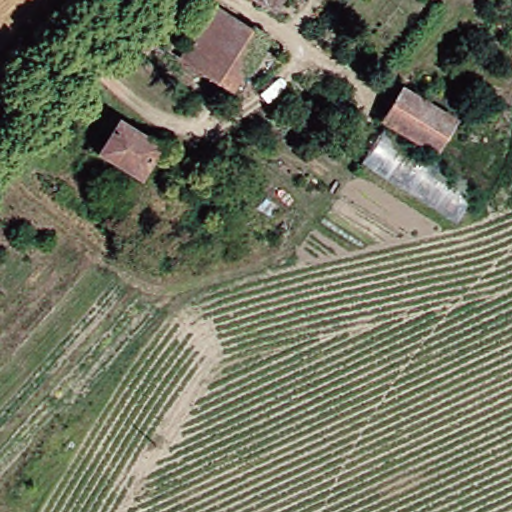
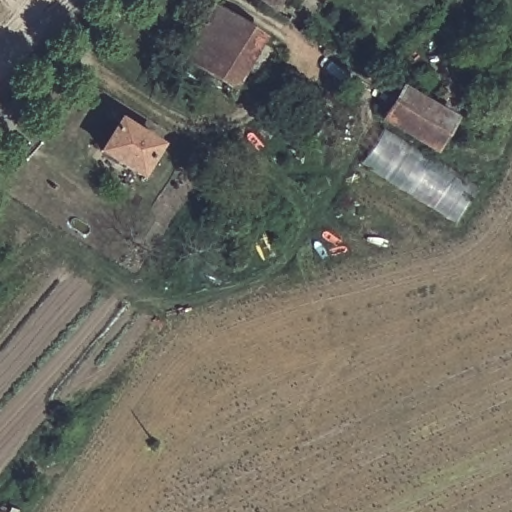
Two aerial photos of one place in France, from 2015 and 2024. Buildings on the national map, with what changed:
unchanged [(266,5),(258,0),(270,0),(266,5)]
unchanged [(174,54),(205,6),(253,36),(222,84),(174,54)]
unchanged [(396,90),(445,121),(430,147),(380,115),(396,90)]
unchanged [(95,147),(110,121),(148,142),(133,170),(95,147)]
unchanged [(450,219),(358,165),(376,133),(467,186),(450,219)]

